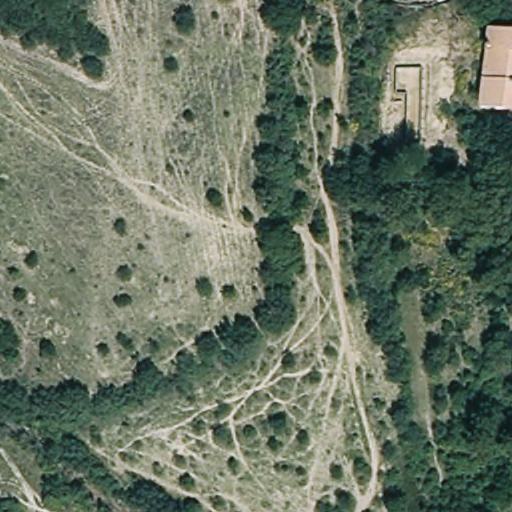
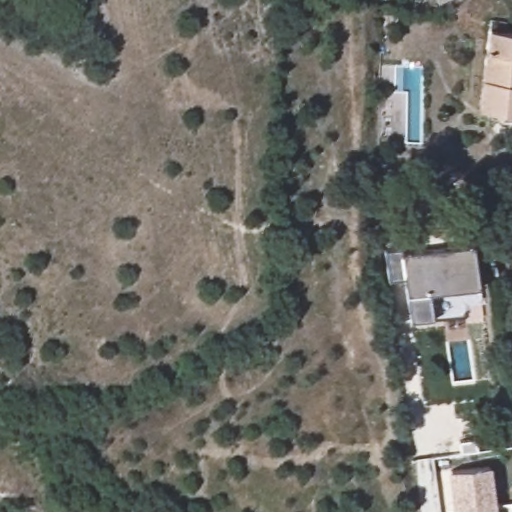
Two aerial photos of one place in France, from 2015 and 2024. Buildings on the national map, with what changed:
new [(449,0),(442,4),(440,0),(449,0)]
unchanged [(504,125),(507,110),(478,106),(488,30),(512,34),(512,127),(504,125)]
new [(434,318),(412,322),(406,278),(390,281),(385,251),(401,247),(403,255),(473,244),(481,286),(430,294),(434,318)]
new [(450,472),(492,467),(497,512),(455,512),(450,472)]

